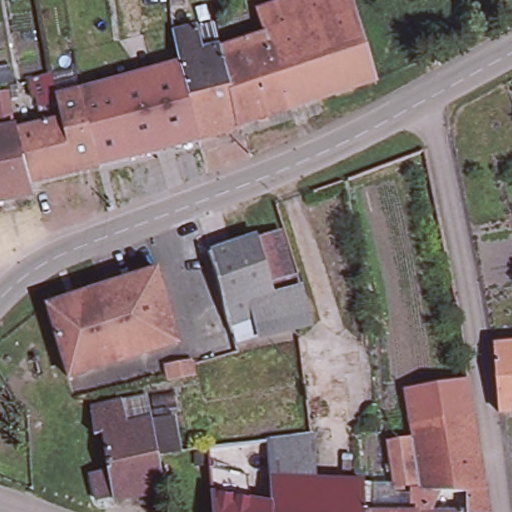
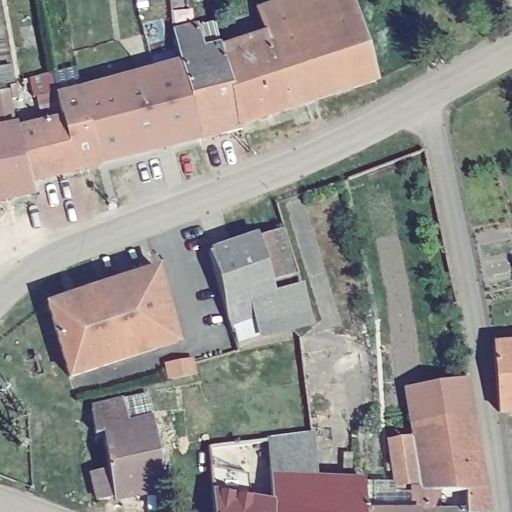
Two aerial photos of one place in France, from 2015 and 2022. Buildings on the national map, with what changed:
unchanged [(245,124),(232,46),(275,33),(266,8),(294,0),(357,0),(379,79),(245,124)]
unchanged [(245,124),(245,127),(205,137),(102,162),(85,89),(126,79),(127,50),(154,43),(152,40),(161,38),(156,17),(183,10),(187,31),(227,20),(231,44),(232,46),(245,124)]
unchanged [(65,115),(48,119),(42,95),(37,97),(32,82),(50,77),(55,76),(59,92),(61,97),(84,90),(85,89),(102,162),(78,168),(67,121),(65,115)]
unchanged [(19,97),(11,99),(7,87),(15,85),(19,97)]
unchanged [(35,179),(24,132),(67,121),(78,168),(35,179)]
unchanged [(24,132),(35,179),(37,191),(0,200),(0,128),(21,124),(24,132)]
unchanged [(298,288),(296,289),(277,294),(261,241),(282,234),(295,277),(300,275),(303,286),(298,288)]
unchanged [(228,306),(212,255),(261,241),(277,294),(296,289),(300,327),(262,334),(239,341),(228,306)]
unchanged [(177,339),(116,359),(92,288),(153,268),(177,339)]
unchanged [(92,288),(116,359),(67,375),(44,303),(92,288)]
unchanged [(496,410),(490,343),(512,342),(512,409),(496,410)]
unchanged [(166,377),(163,361),(190,356),(191,362),(193,372),(166,377)]
unchanged [(414,488),(424,485),(422,479),(418,480),(397,485),(387,440),(408,435),(414,434),(404,387),(465,377),(486,512),(411,512),(414,488)]
unchanged [(97,470),(114,467),(107,431),(99,432),(94,407),(125,399),(130,423),(155,418),(167,489),(119,498),(119,495),(102,498),(97,470)]
unchanged [(266,438),(311,431),(319,478),(367,479),(366,511),(366,512),(269,512),(266,438)]
unchanged [(205,446),(266,438),(269,512),(211,512),(205,446)]
unchanged [(366,511),(381,512),(366,512),(366,511)]

